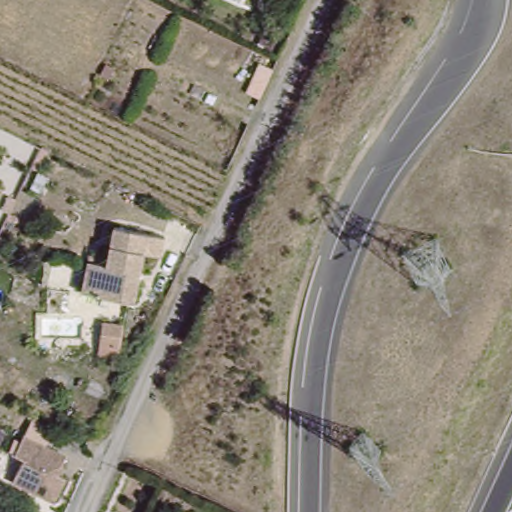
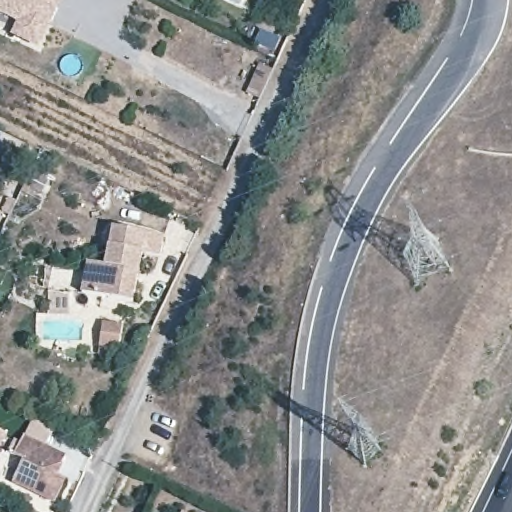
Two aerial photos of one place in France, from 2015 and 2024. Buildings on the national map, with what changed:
new [(59,0),(55,10),(50,19),(37,46),(15,35),(0,28),(0,0),(59,0)]
unchanged [(162,255),(148,252),(142,302),(90,295),(95,265),(110,267),(115,230),(165,236),(162,255)]
unchanged [(123,320),(120,351),(102,350),(105,319),(123,320)]
unchanged [(14,478),(0,472),(0,468),(2,463),(9,465),(14,455),(56,475),(47,492),(56,496),(49,512),(28,512),(4,501),(14,478)]

